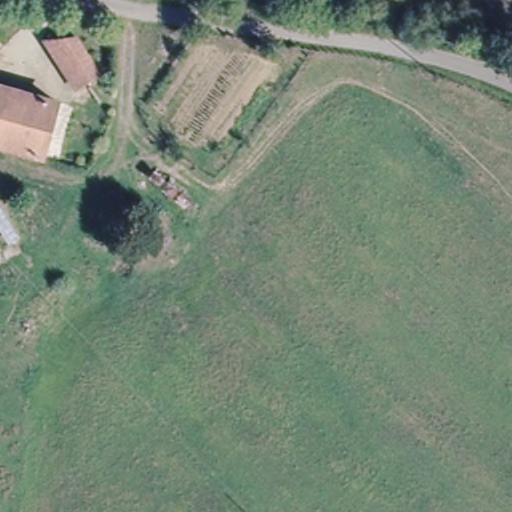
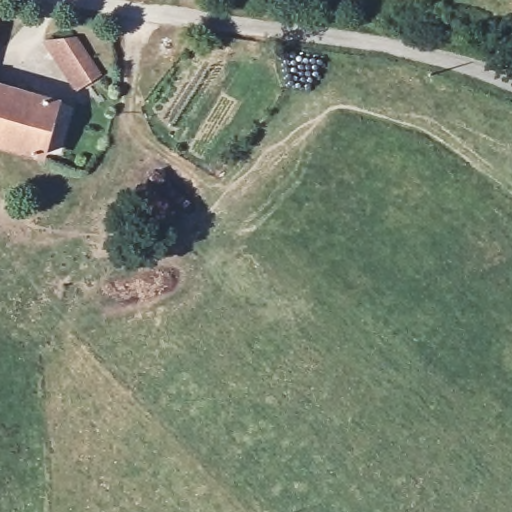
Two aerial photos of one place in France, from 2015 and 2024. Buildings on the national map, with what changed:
unchanged [(85,75),(72,80),(47,31),(78,26),(108,82),(94,90),(85,75)]
unchanged [(35,127),(55,132),(51,146),(0,133),(0,76),(45,87),(35,127)]

